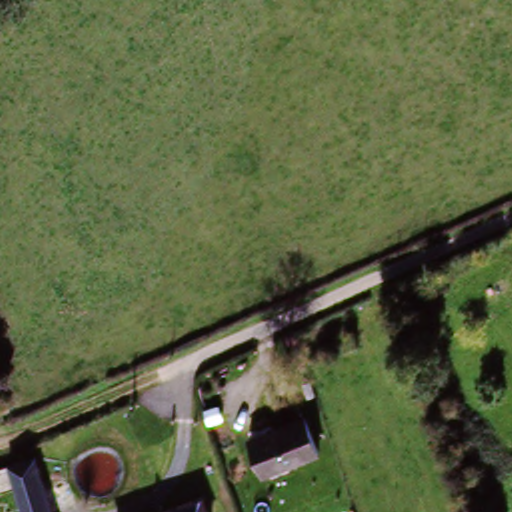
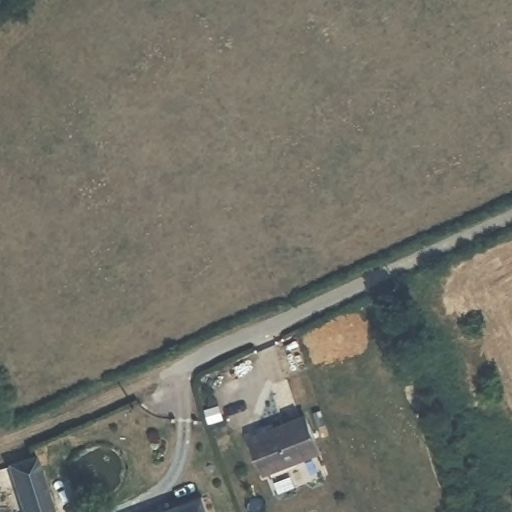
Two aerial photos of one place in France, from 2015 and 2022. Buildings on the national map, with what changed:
unchanged [(263,478),(248,438),(306,417),(320,460),(263,478)]
unchanged [(0,497),(0,472),(9,469),(35,461),(51,512),(24,512),(18,492),(0,497)]
unchanged [(198,512),(174,512),(196,505),(198,512)]

